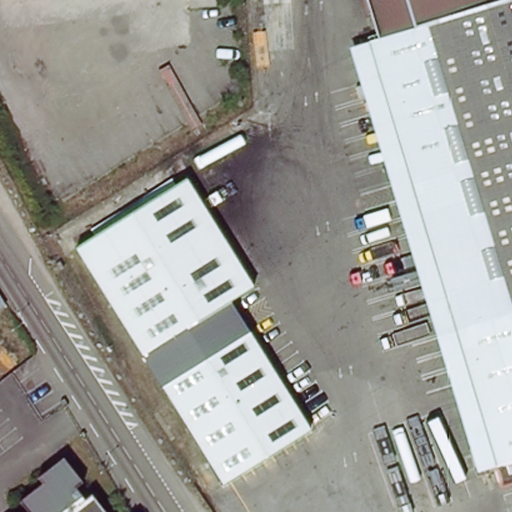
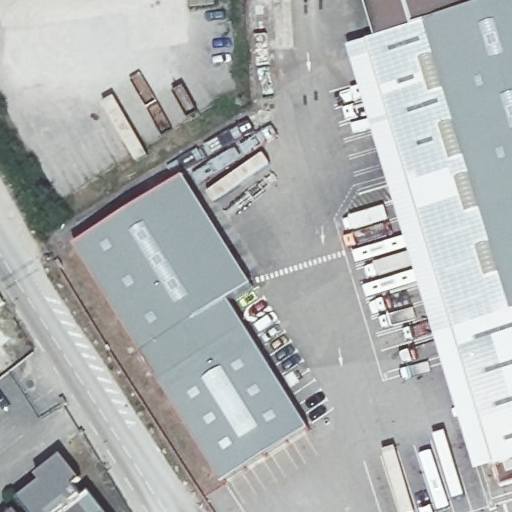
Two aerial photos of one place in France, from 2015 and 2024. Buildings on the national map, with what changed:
unchanged [(210,0),(210,8),(196,9),(195,0),(210,0)]
unchanged [(408,0),(418,33),(382,44),(369,0),(408,0)]
unchanged [(418,33),(408,0),(512,0),(512,463),(510,464),(495,468),(370,47),(382,44),(418,33)]
unchanged [(495,468),(475,474),(352,52),(370,47),(495,468)]
unchanged [(311,430),(223,485),(183,421),(182,421),(128,336),(74,250),(186,179),(253,287),(230,302),(281,383),(311,430)]
unchanged [(512,463),(512,470),(510,464),(512,463)]
unchanged [(61,464),(103,512),(34,512),(22,498),(61,464)]
unchanged [(12,506),(18,512),(5,512),(12,506)]

